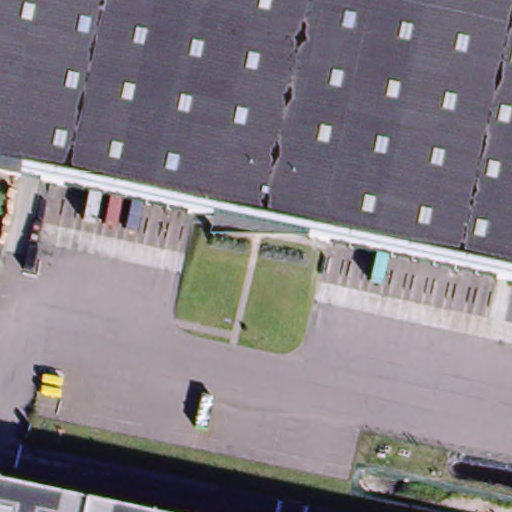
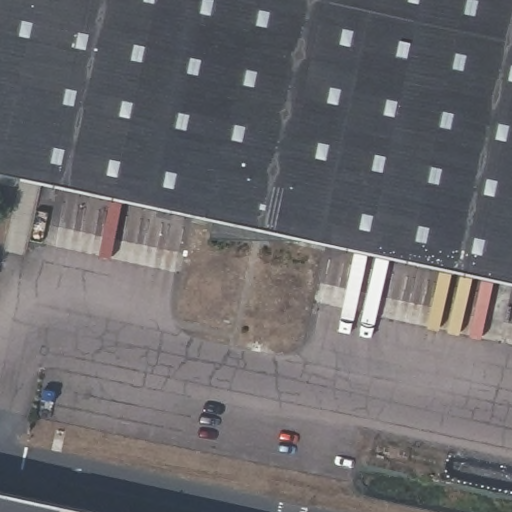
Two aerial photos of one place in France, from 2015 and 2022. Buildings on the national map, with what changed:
unchanged [(0,0),(512,0),(512,279),(0,169),(0,0)]
unchanged [(0,490),(102,512),(0,512),(0,490)]

